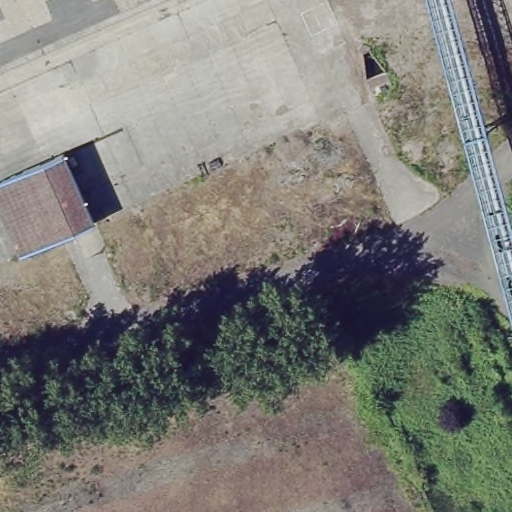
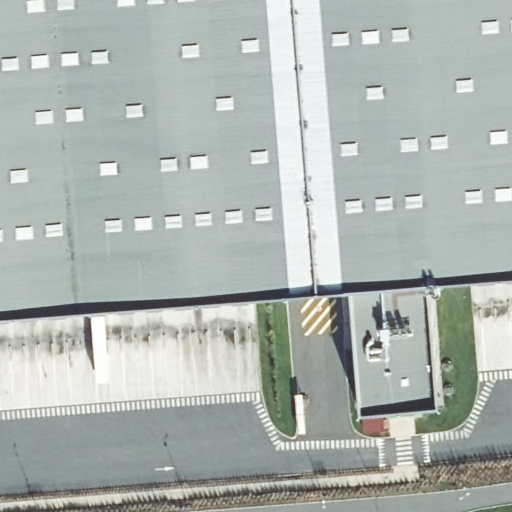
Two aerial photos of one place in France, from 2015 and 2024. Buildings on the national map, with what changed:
new [(415,285),(426,407),(349,409),(340,289),(0,315),(0,0),(512,0),(512,277),(415,285)]
demolished [(0,182),(63,153),(69,167),(80,160),(97,188),(82,196),(95,226),(22,257),(0,210),(0,182)]

